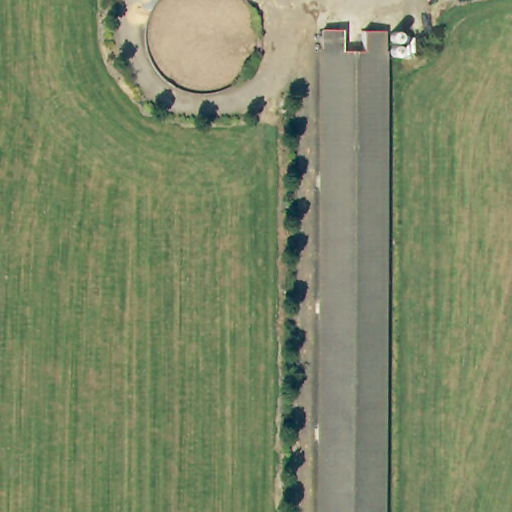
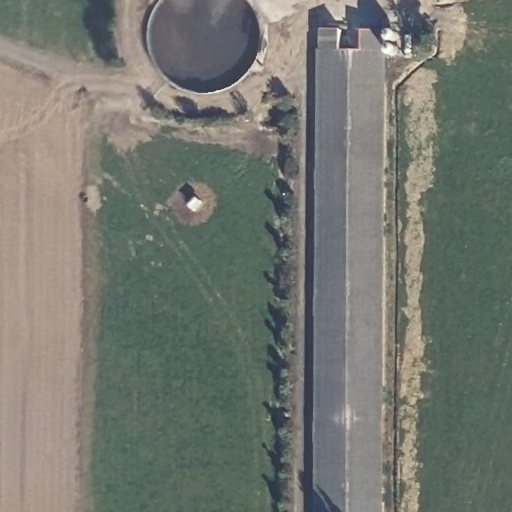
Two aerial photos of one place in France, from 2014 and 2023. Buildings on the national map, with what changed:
unchanged [(363,55),(363,34),(385,34),(386,55),(385,195),(386,512),(323,512),(323,275),(323,55),(363,55)]

